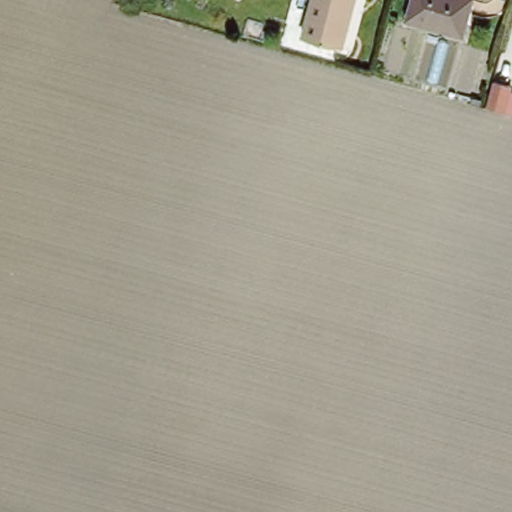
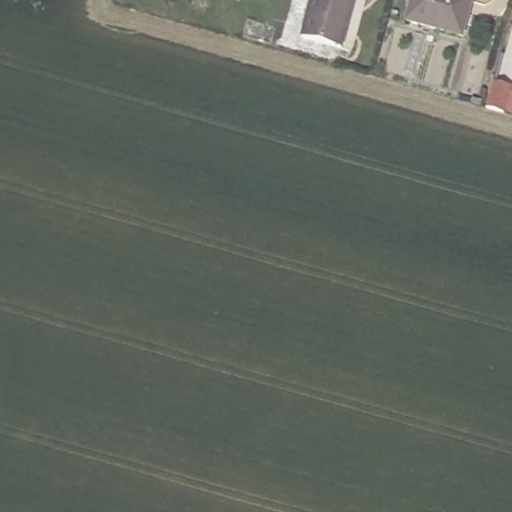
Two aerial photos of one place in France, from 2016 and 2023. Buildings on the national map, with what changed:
unchanged [(355,0),(340,51),(302,41),(314,0),(355,0)]
unchanged [(412,24),(419,0),(480,0),(470,38),(412,24)]
unchanged [(512,90),(512,114),(488,109),(495,85),(512,90)]

